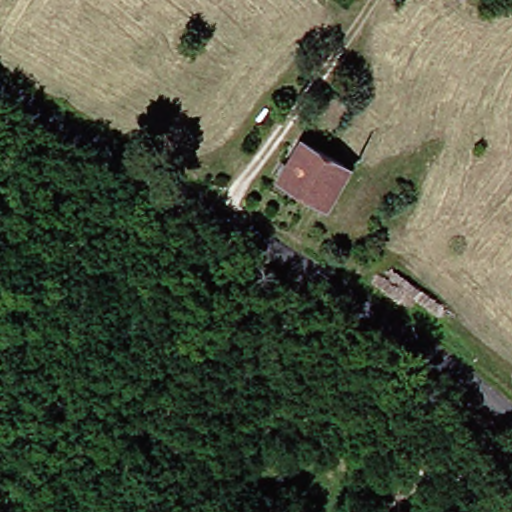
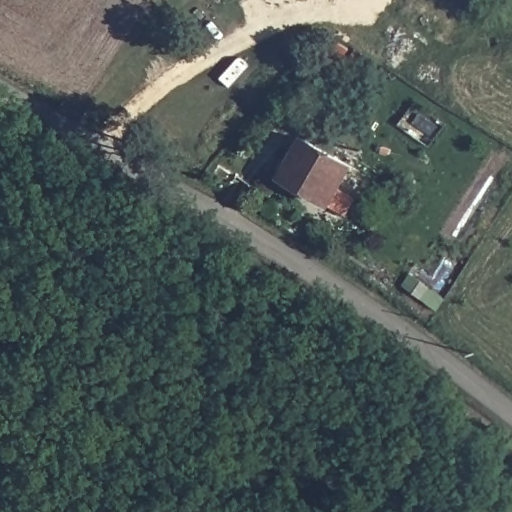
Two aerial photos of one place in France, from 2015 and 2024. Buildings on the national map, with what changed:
unchanged [(338,205),(289,177),(292,173),(287,170),(294,158),(299,161),(312,138),(361,166),(338,205)]

